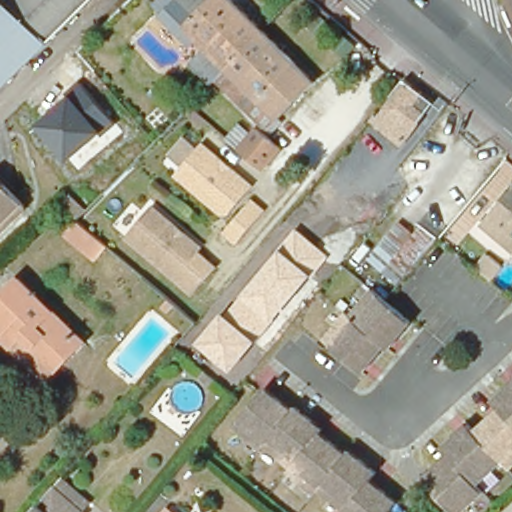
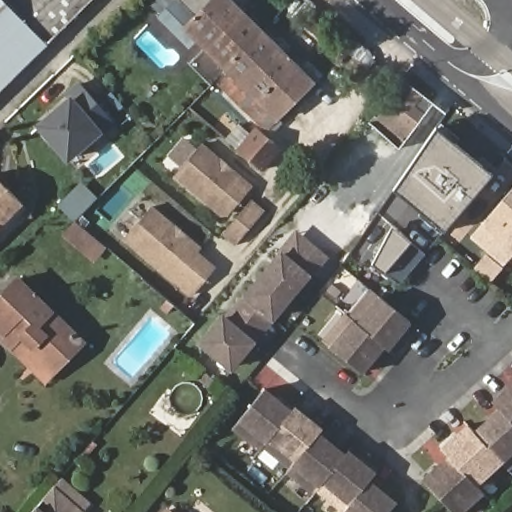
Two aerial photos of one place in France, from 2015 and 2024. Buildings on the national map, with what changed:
unchanged [(0,85),(0,0),(86,0),(0,85)]
unchanged [(225,70),(196,40),(190,46),(159,15),(172,0),(228,0),(260,32),(226,69),(225,70)]
unchanged [(311,83),(277,118),(263,133),(280,149),(262,170),(250,183),(225,161),(236,148),(247,135),(243,132),(254,120),(215,82),(225,70),(226,69),(260,32),(311,83)]
unchanged [(377,117),(406,80),(425,95),(443,111),(432,124),(407,154),(368,122),(373,115),(377,117)]
unchanged [(71,95),(66,93),(80,81),(118,123),(104,138),(100,133),(67,163),(37,125),(71,95)]
new [(395,190),(438,128),(495,175),(445,231),(443,231),(441,233),(419,215),(421,212),(395,190)]
unchanged [(202,145),(252,188),(230,214),(222,215),(176,175),(202,145)]
unchanged [(0,220),(0,181),(20,200),(0,220)]
unchanged [(480,226),(488,217),(512,188),(512,253),(480,226)]
unchanged [(57,234),(72,218),(62,208),(58,204),(67,193),(85,209),(75,219),(108,248),(90,263),(57,234)]
unchanged [(235,245),(220,232),(252,196),(265,208),(235,245)]
unchanged [(150,205),(200,247),(196,251),(215,267),(191,293),(125,235),(150,205)]
unchanged [(402,276),(382,259),(415,219),(438,239),(402,276)]
unchanged [(221,313),(226,316),(226,315),(240,298),(243,298),(241,296),(280,250),(281,248),(296,230),(330,255),(310,278),(311,275),(273,320),(275,321),(257,341),(256,341),(232,370),(196,343),(221,313)]
unchanged [(7,348),(0,340),(0,293),(16,278),(34,296),(47,310),(80,342),(64,358),(40,381),(7,348)]
unchanged [(414,324),(390,353),(383,349),(360,376),(320,344),(344,317),(350,322),(375,293),(383,299),(414,324)]
unchanged [(444,450),(470,426),(477,434),(502,410),(495,402),(512,386),(512,469),(511,470),(505,462),(478,485),(485,493),(465,512),(455,512),(445,502),(426,481),(451,458),(444,450)]
unchanged [(291,410),(295,406),(322,427),(317,432),(345,455),(350,450),(377,472),(370,483),(394,503),(387,512),(344,512),(346,510),(318,487),(315,492),(288,469),(291,466),(265,444),(261,447),(233,424),(263,387),(291,410)]
unchanged [(87,512),(30,512),(64,474),(96,502),(87,512)]
unchanged [(164,512),(170,506),(177,512),(164,512)]

